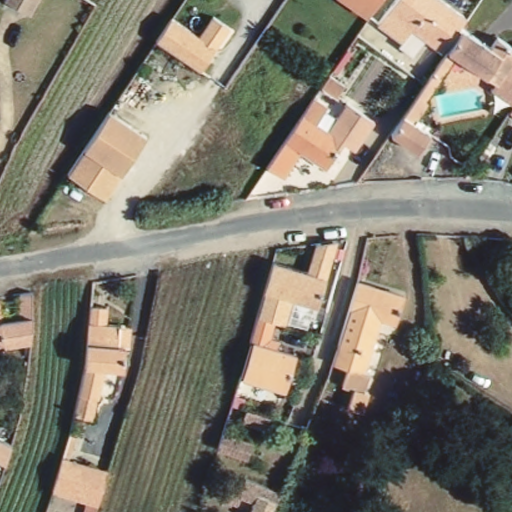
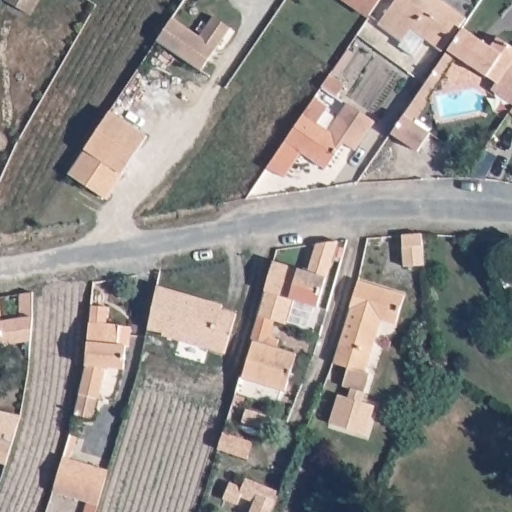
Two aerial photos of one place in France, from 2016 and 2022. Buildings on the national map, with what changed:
unchanged [(10,5),(12,0),(47,0),(36,20),(10,5)]
unchanged [(345,0),(381,0),(371,15),(345,0)]
unchanged [(463,30),(448,52),(443,60),(428,51),(420,65),(377,37),(402,0),(430,0),(467,25),(463,30)]
unchanged [(200,36),(213,15),(230,26),(201,69),(156,40),(171,17),(200,36)]
unchanged [(500,86),(448,52),(463,30),(492,49),(498,40),(512,49),(512,106),(495,94),(500,86)]
unchanged [(443,60),(448,52),(456,56),(427,101),(428,105),(418,120),(435,131),(422,150),(395,134),(443,60)]
unchanged [(317,98),(330,107),(321,124),(330,130),(348,102),(375,121),(357,149),(346,142),(328,169),(302,151),(286,177),(271,167),(317,98)]
unchanged [(112,198),(74,173),(115,111),(152,135),(112,198)]
new [(402,236),(422,236),(422,267),(402,267),(402,236)]
unchanged [(342,239),(322,303),(297,296),(290,321),(278,317),(262,312),(277,260),(312,271),(321,242),(322,241),(342,237),(342,239)]
new [(193,297),(202,299),(222,305),(221,309),(236,313),(224,353),(162,335),(163,332),(147,328),(156,286),(193,297)]
unchanged [(368,376),(375,378),(370,396),(374,397),(368,418),(353,414),(358,395),(348,392),(353,372),(337,367),(340,357),(343,346),(360,287),(407,300),(400,327),(385,322),(368,376)]
unchanged [(7,337),(0,339),(0,297),(7,337)]
unchanged [(76,420),(79,406),(81,398),(90,358),(92,310),(112,312),(110,327),(123,330),(135,332),(134,340),(132,351),(130,351),(126,373),(107,371),(101,402),(98,402),(94,423),(76,420)]
unchanged [(278,317),(270,345),(298,353),(287,388),(247,376),(257,341),(253,340),(262,312),(278,317)]
unchanged [(0,459),(0,435),(12,441),(6,461),(0,459)]
unchanged [(250,444),(245,461),(216,452),(221,435),(250,444)]
unchanged [(107,481),(98,507),(56,493),(64,472),(67,461),(109,474),(107,481)]
new [(229,486),(241,490),(244,481),(280,492),(272,512),(252,512),(255,503),(241,499),(238,507),(223,502),(229,486)]

